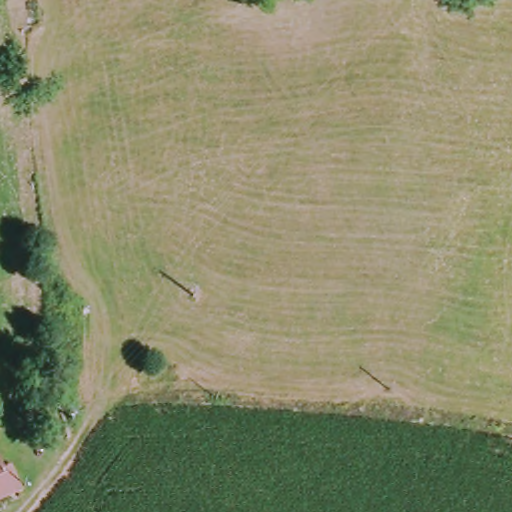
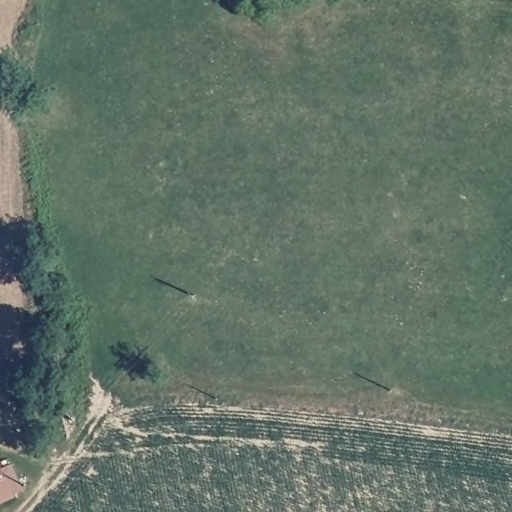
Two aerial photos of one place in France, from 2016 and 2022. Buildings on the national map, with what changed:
unchanged [(0,502),(0,464),(15,495),(0,502)]

